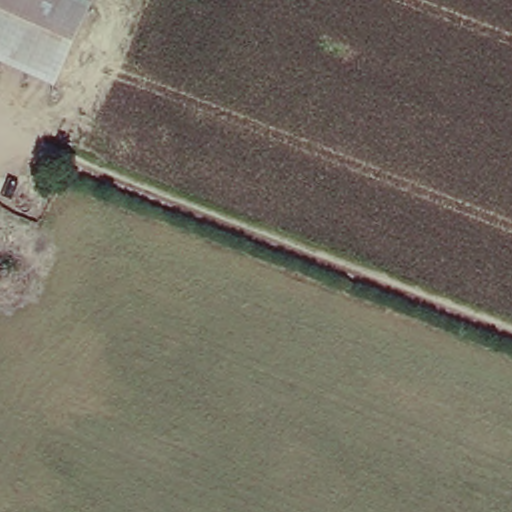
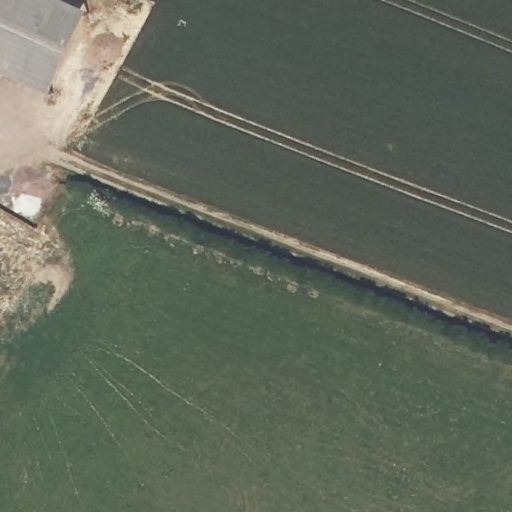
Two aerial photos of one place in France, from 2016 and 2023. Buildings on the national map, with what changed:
unchanged [(91,11),(52,97),(0,74),(0,0),(64,0),(91,11)]

